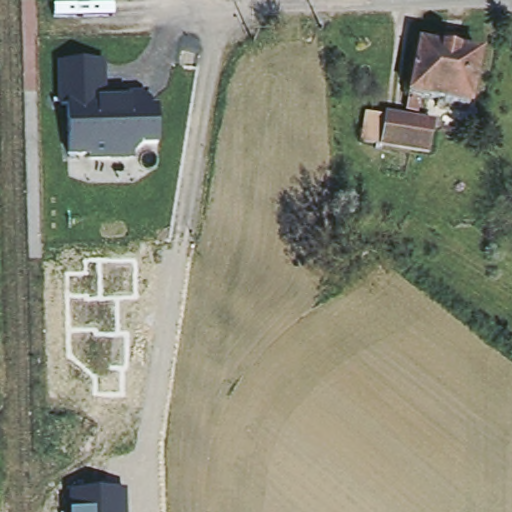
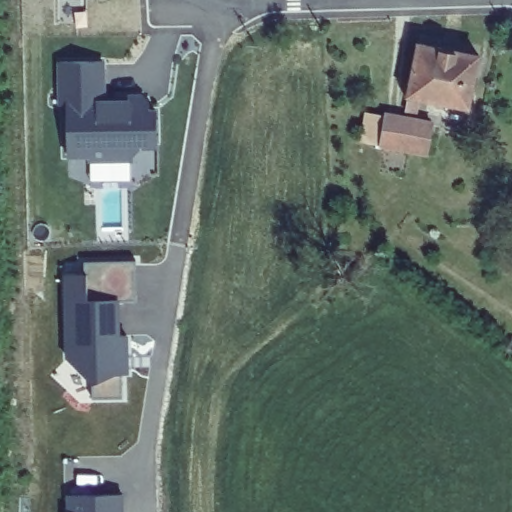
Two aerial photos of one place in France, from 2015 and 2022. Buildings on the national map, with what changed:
unchanged [(411,110),(414,93),(413,93),(424,42),(484,55),(474,106),(426,95),(422,112),(411,110)]
unchanged [(105,60),(108,100),(146,99),(146,112),(157,111),(158,142),(142,144),(134,153),(70,156),(68,106),(60,107),(59,61),(105,60)]
unchanged [(434,152),(385,143),(368,140),(373,112),(389,115),(439,124),(434,152)]
unchanged [(349,234),(349,245),(336,245),(336,233),(349,234)]
new [(138,302),(123,302),(124,322),(128,322),(129,331),(133,334),(133,369),(129,368),(129,373),(129,398),(123,397),(91,397),(91,381),(64,357),(64,300),(64,274),(65,270),(79,269),(79,273),(84,274),(84,261),(136,260),(138,302)]
unchanged [(127,512),(72,512),(72,496),(126,495),(127,512)]

